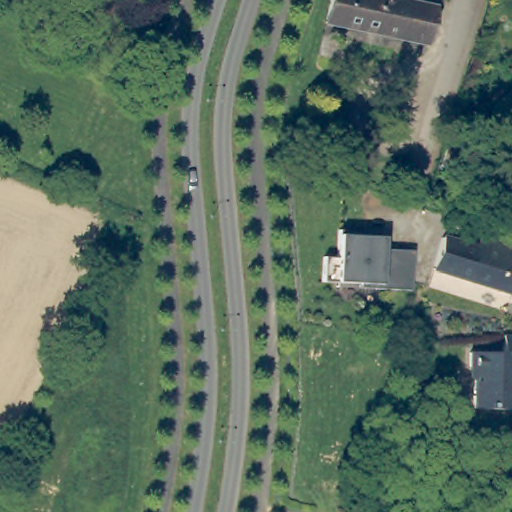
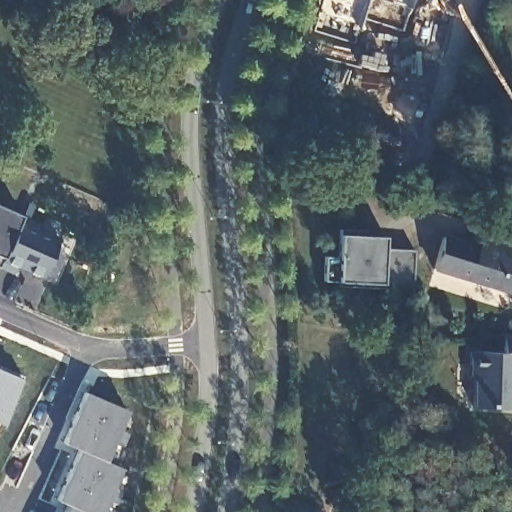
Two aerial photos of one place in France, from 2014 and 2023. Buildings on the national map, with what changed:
unchanged [(434,6),(426,42),(324,22),(328,0),(407,0),(434,6)]
new [(22,216),(20,222),(60,238),(42,277),(17,267),(14,275),(0,267),(0,206),(22,216)]
unchanged [(441,235),(475,246),(481,227),(497,232),(512,237),(512,285),(510,292),(430,267),(441,235)]
unchanged [(412,288),(360,286),(360,282),(323,280),(324,255),(338,256),(339,228),(367,230),(367,235),(382,235),(382,247),(414,249),(412,288)]
unchanged [(477,367),(472,362),(474,348),(506,352),(508,333),(512,333),(512,408),(473,405),(477,367)]
new [(22,378),(2,424),(0,423),(0,369),(22,378)]
new [(85,390),(128,408),(106,458),(80,447),(65,441),(85,390)]
new [(106,458),(122,465),(102,512),(91,512),(67,502),(58,498),(80,447),(106,458)]
new [(91,512),(63,512),(67,502),(91,512)]

